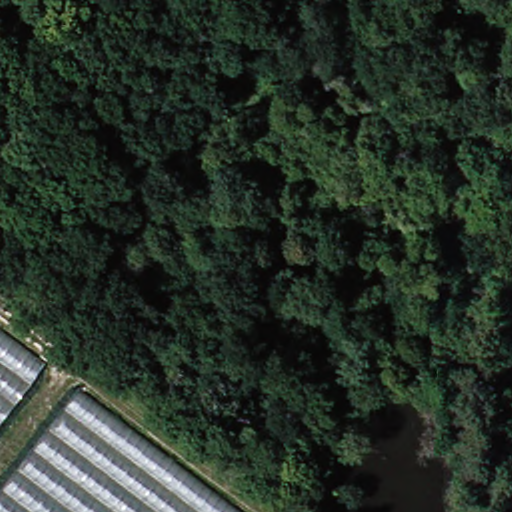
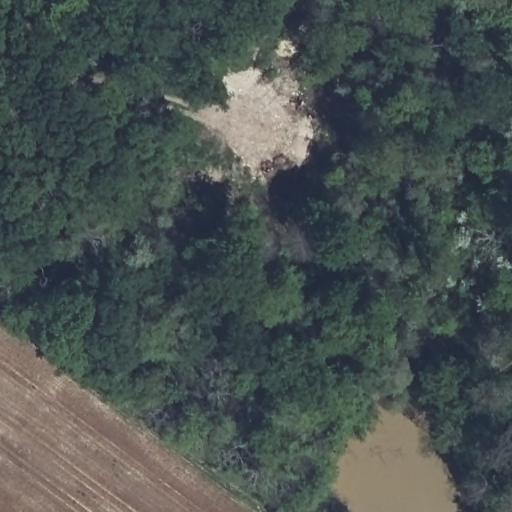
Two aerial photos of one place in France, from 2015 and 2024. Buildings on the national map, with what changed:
demolished [(0,341),(31,364),(0,406),(0,341)]
demolished [(0,480),(66,393),(226,512),(0,512),(0,480)]

